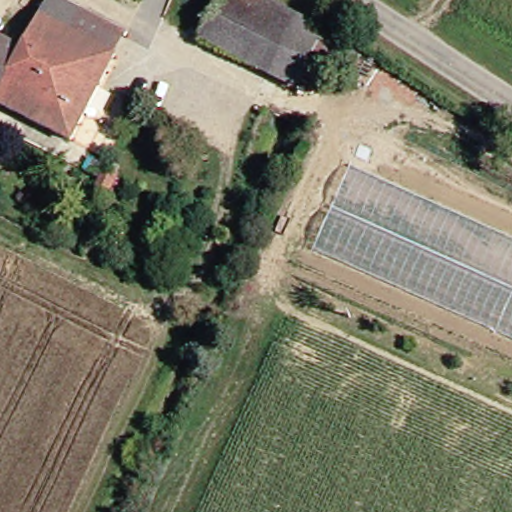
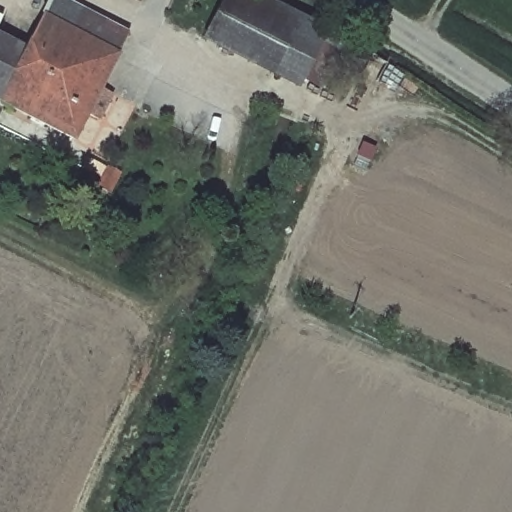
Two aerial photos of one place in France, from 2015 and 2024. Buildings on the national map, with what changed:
unchanged [(52,0),(56,0),(130,34),(80,138),(2,97),(30,44),(52,0)]
unchanged [(213,43),(236,0),(270,0),(310,22),(279,78),(213,43)]
unchanged [(30,44),(2,97),(0,96),(0,29),(30,44)]
new [(512,335),(315,247),(353,162),(512,233),(512,335)]

